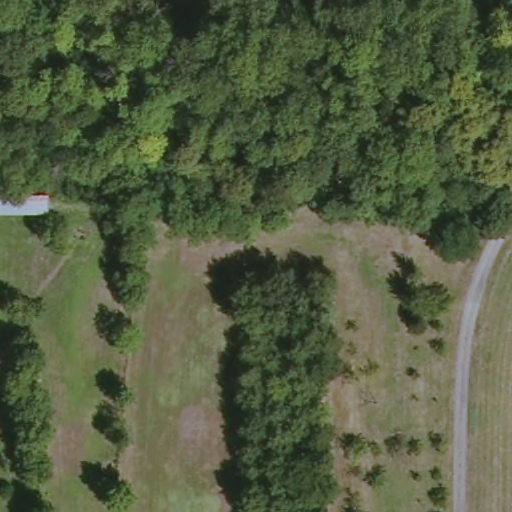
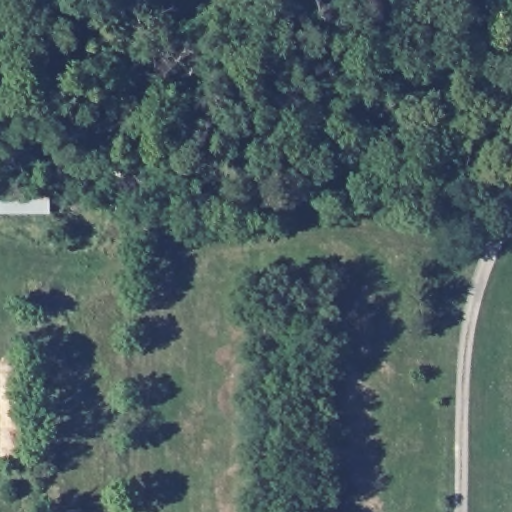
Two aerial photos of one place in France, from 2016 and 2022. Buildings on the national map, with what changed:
unchanged [(0,204),(0,188),(133,191),(133,200),(83,198),(83,206),(0,204)]

